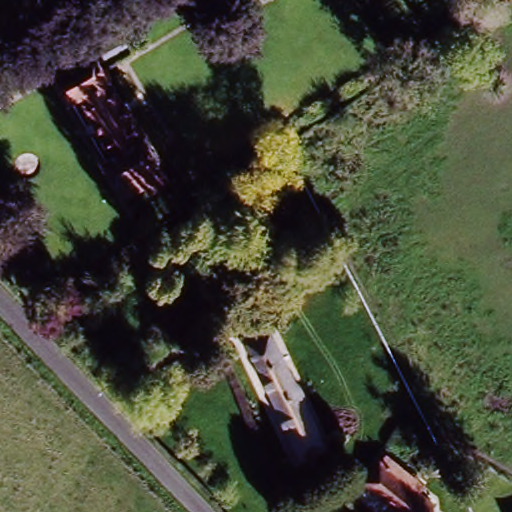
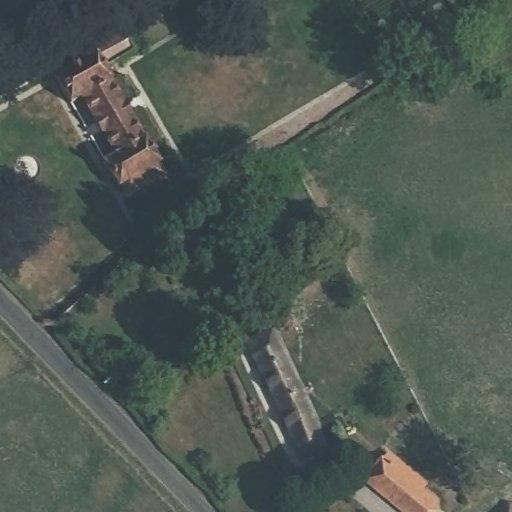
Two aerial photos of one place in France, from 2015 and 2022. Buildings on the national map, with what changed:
unchanged [(141,58),(113,74),(166,177),(116,202),(93,158),(102,154),(84,123),(78,128),(55,90),(99,65),(95,58),(129,39),(141,58)]
unchanged [(296,454),(238,344),(270,336),(326,443),(296,454)]
unchanged [(396,464),(429,492),(421,500),(433,511),(432,512),(395,512),(361,483),(386,455),(396,464)]

